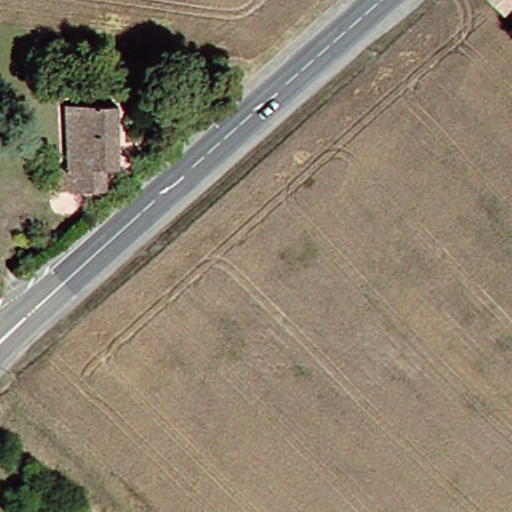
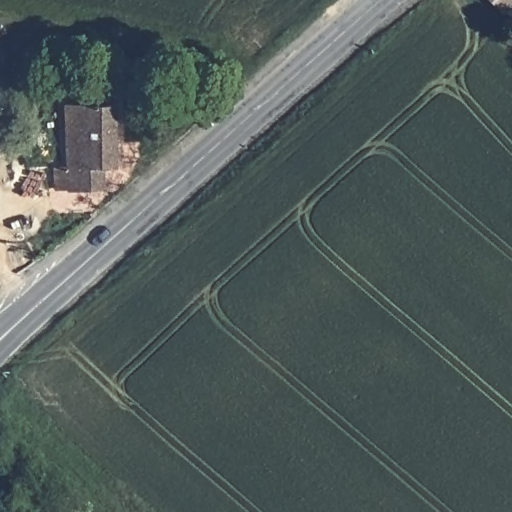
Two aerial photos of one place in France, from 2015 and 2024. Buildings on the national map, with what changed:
unchanged [(485,0),(512,0),(512,10),(502,19),(485,0)]
unchanged [(57,118),(58,112),(108,107),(114,167),(98,169),(98,185),(48,194),(46,172),(51,172),(48,120),(57,118)]

